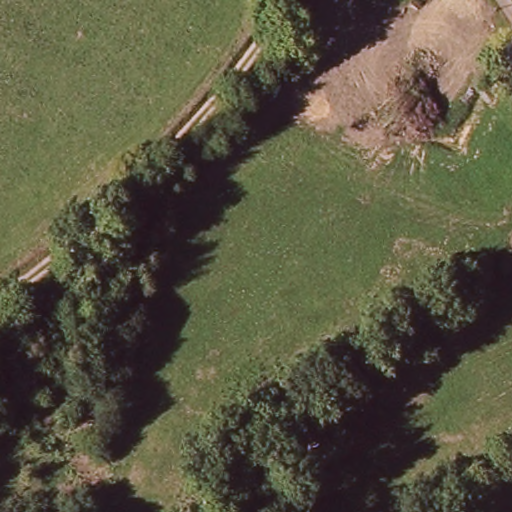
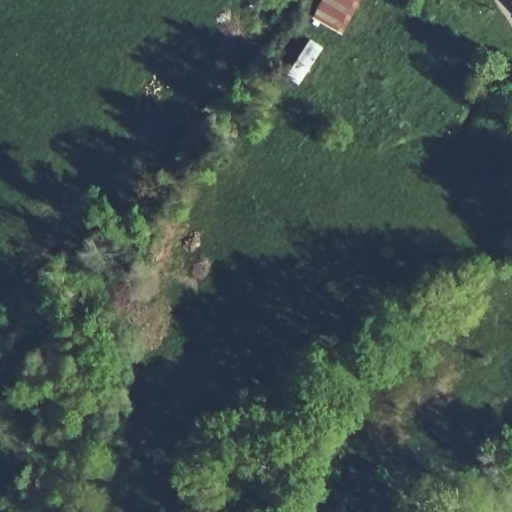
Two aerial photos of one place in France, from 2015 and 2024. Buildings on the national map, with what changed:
new [(313,17),(323,0),(362,0),(343,35),(313,17)]

